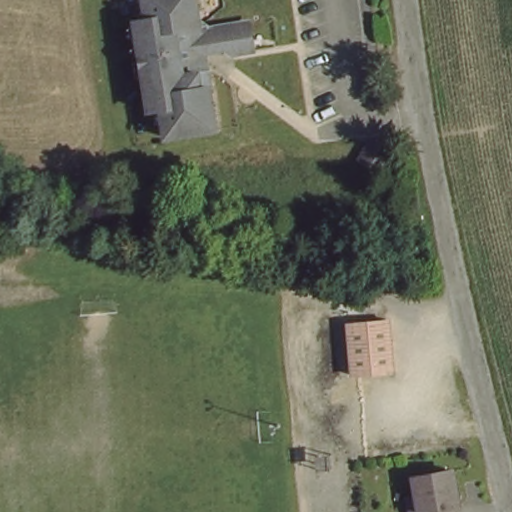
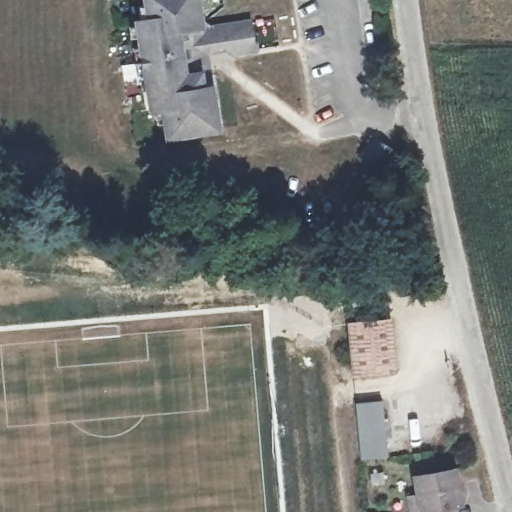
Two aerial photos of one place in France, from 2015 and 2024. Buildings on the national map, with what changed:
unchanged [(156,110),(144,111),(131,22),(143,20),(140,0),(191,0),(195,22),(203,29),(244,23),(247,51),(224,54),(218,49),(201,52),(193,61),(195,73),(202,72),(213,130),(161,136),(156,110)]
unchanged [(368,144),(371,140),(380,145),(389,150),(389,155),(378,171),(375,171),(358,160),(367,146),(368,144)]
unchanged [(351,375),(346,323),(390,320),(394,371),(351,375)]
new [(356,405),(382,402),(389,458),(362,461),(356,405)]
unchanged [(414,509),(412,498),(419,497),(416,476),(456,470),(460,502),(454,503),(455,512),(414,512),(414,509)]

